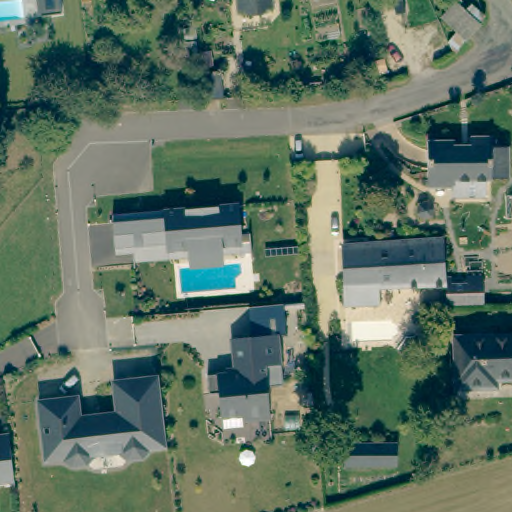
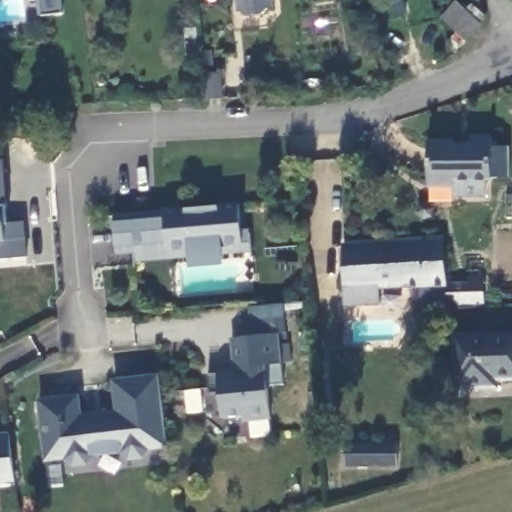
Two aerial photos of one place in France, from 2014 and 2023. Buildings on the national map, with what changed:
unchanged [(35,0),(60,0),(62,13),(37,16),(35,0)]
unchanged [(271,4),(271,6),(265,7),(262,13),(249,14),(246,8),(242,8),(242,0),(270,0),(271,4)]
unchanged [(434,27),(451,13),(476,42),(458,56),(434,27)]
unchanged [(222,75),(223,99),(208,100),(207,77),(222,75)]
unchanged [(450,182),(425,182),(424,136),(450,135),(450,140),(467,139),(467,131),(487,131),(487,142),(505,142),(505,172),(487,172),(487,174),(481,175),(481,191),(450,191),(450,182)]
new [(8,225),(24,222),(27,257),(0,259),(0,160),(3,160),(8,225)]
unchanged [(242,244),(251,244),(251,252),(222,254),(222,266),(189,269),(188,257),(135,261),(134,253),(116,254),(112,215),(164,210),(238,204),(242,244)]
unchanged [(380,283),(377,238),(417,236),(417,281),(380,283)]
unchanged [(467,272),(482,272),(484,303),(469,305),(444,307),(444,298),(445,280),(417,281),(417,236),(447,237),(445,275),(451,274),(452,280),(468,279),(467,272)]
unchanged [(380,301),(347,302),(344,238),(377,238),(380,283),(380,301)]
unchanged [(512,335),(512,380),(498,381),(498,387),(457,389),(454,338),(512,335)]
unchanged [(230,343),(277,338),(282,389),(269,390),(266,394),(268,423),(242,426),(242,420),(220,422),(217,397),(207,398),(206,379),(228,377),(232,371),(230,343)]
unchanged [(43,448),(37,408),(77,403),(79,423),(116,418),(112,387),(157,381),(162,417),(164,436),(166,451),(146,454),(147,456),(142,462),(127,464),(121,459),(121,453),(90,457),(91,463),(86,469),(72,471),(66,466),(46,469),(43,448)]
unchanged [(12,484),(0,486),(0,438),(7,437),(12,484)]
unchanged [(395,462),(378,462),(343,460),(345,439),(380,441),(396,441),(395,462)]

